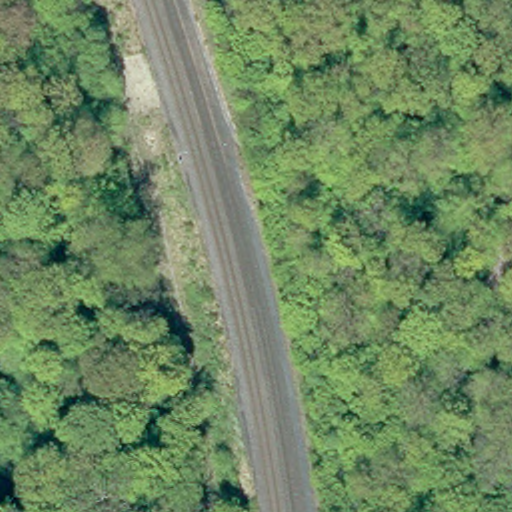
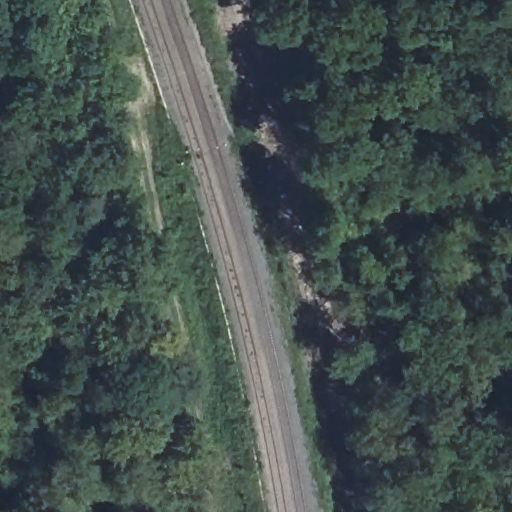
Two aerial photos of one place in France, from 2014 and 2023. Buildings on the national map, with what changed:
unchanged [(274,138),(289,133),(293,147),(278,152),(274,138)]

